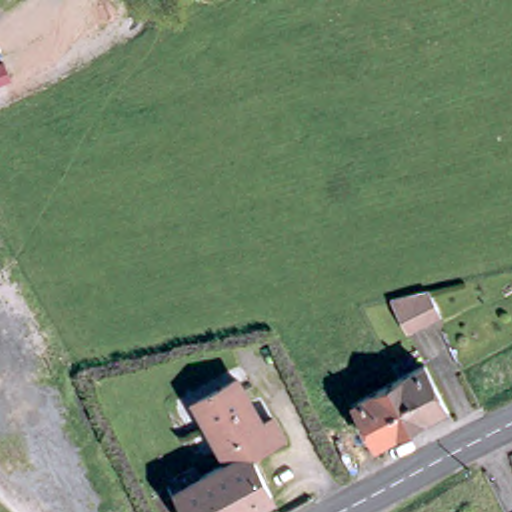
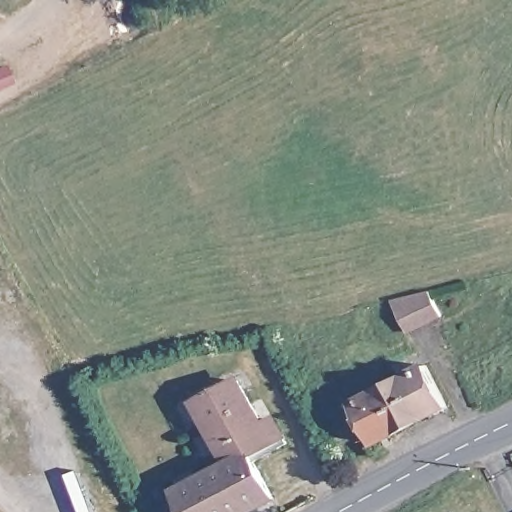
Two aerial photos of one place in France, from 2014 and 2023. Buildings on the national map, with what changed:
unchanged [(429,291),(441,315),(423,324),(422,322),(407,331),(392,300),(408,296),(429,291)]
unchanged [(424,362),(446,402),(373,442),(351,400),(424,362)]
unchanged [(191,468),(196,478),(223,462),(190,403),(231,382),(255,425),(268,418),(278,437),(245,455),(268,496),(239,512),(185,512),(174,491),(175,490),(169,480),(191,468)]

